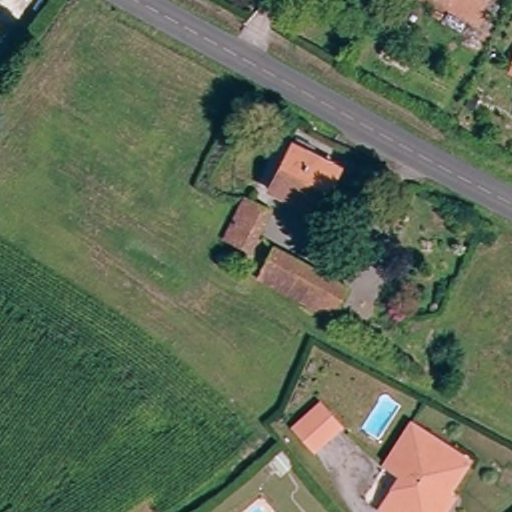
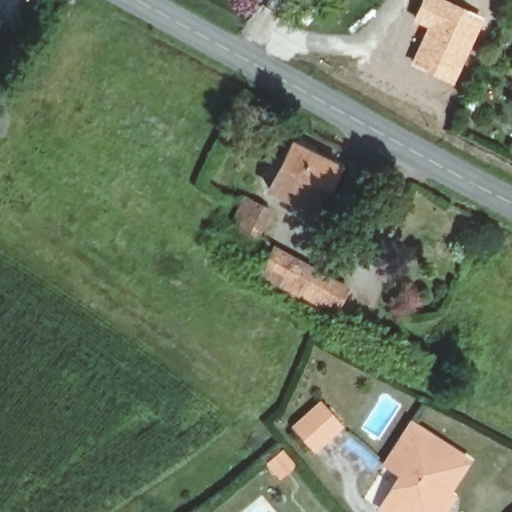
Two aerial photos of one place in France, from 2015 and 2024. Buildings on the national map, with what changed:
new [(407,12),(393,37),(382,31),(374,44),(365,39),(388,0),(407,12)]
new [(411,21),(421,0),(449,0),(486,18),(453,86),(410,63),(426,28),(411,21)]
unchanged [(346,172),(321,220),(275,194),(301,147),(346,172)]
unchanged [(270,213),(248,254),(226,243),(245,200),(270,213)]
unchanged [(268,278),(284,250),(356,291),(340,321),(268,278)]
unchanged [(318,402),(339,425),(315,447),(313,449),(293,427),(295,424),(318,402)]
unchanged [(447,496),(451,498),(442,512),(401,512),(379,512),(401,478),(385,467),(411,427),(427,438),(468,463),(447,496)]

